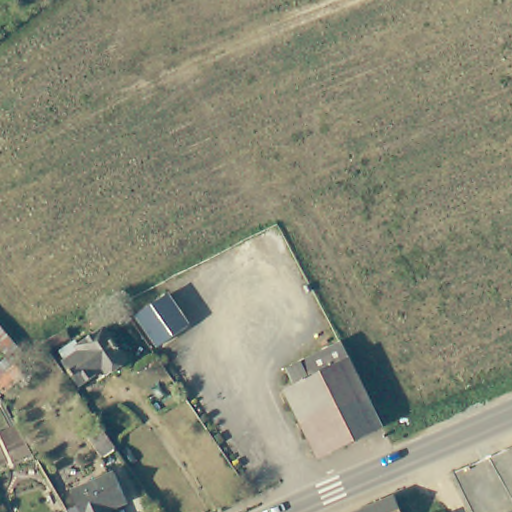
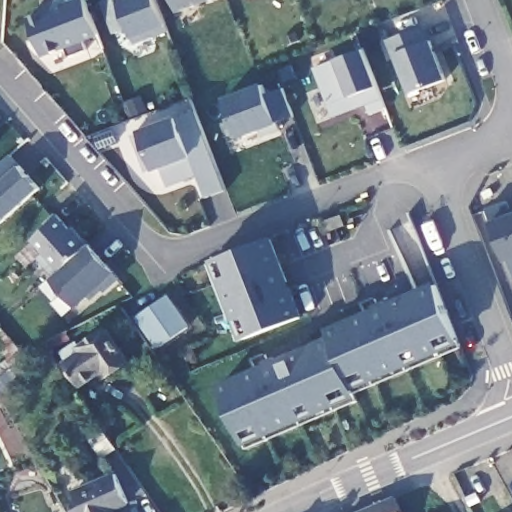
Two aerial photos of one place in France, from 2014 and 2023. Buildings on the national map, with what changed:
new [(98,36),(83,41),(85,49),(68,55),(65,47),(41,55),(28,16),(40,12),(38,6),(56,0),(67,0),(69,0),(86,0),(98,36)]
new [(131,40),(127,28),(112,34),(98,0),(100,0),(156,0),(166,26),(131,40)]
new [(170,0),(208,0),(175,12),(170,0)]
new [(408,93),(394,57),(390,55),(385,40),(424,26),(429,41),(432,40),(446,79),(408,93)]
new [(385,107),(369,113),(366,104),(331,116),(313,66),(335,59),(362,49),(385,107)]
new [(293,115),(278,122),(237,137),(223,96),(261,82),(264,92),(282,87),(293,115)]
new [(225,189),(206,197),(198,176),(168,186),(162,168),(145,172),(131,134),(138,132),(137,130),(175,117),(176,119),(195,110),(225,189)]
new [(0,222),(0,164),(9,155),(39,189),(0,222)]
new [(512,198),(512,271),(486,211),(512,198)]
unchanged [(106,293),(103,291),(92,301),(89,296),(76,308),(60,293),(53,300),(41,287),(52,275),(35,258),(42,253),(31,240),(58,215),(70,229),(73,225),(120,279),(106,293)]
new [(304,316),(241,340),(208,261),(272,236),(304,316)]
new [(328,337),(326,329),(435,280),(461,343),(351,389),(356,397),(244,444),(217,384),(328,337)]
unchanged [(138,315),(165,296),(186,327),(159,346),(138,315)]
unchanged [(127,360),(108,373),(104,369),(79,386),(63,364),(65,362),(59,354),(75,343),(78,347),(106,329),(127,360)]
unchanged [(72,340),(47,353),(42,346),(50,340),(67,331),(72,340)]
demolished [(291,369),(345,343),(351,353),(353,359),(298,385),(291,369)]
demolished [(332,454),(298,385),(353,359),(386,428),(332,454)]
unchanged [(115,452),(105,460),(88,437),(99,428),(115,452)]
unchanged [(76,499),(70,486),(111,466),(125,496),(109,505),(113,512),(66,512),(63,505),(76,499)]
unchanged [(362,512),(395,497),(401,512),(362,512)]
unchanged [(512,512),(511,512),(512,511),(512,512)]

